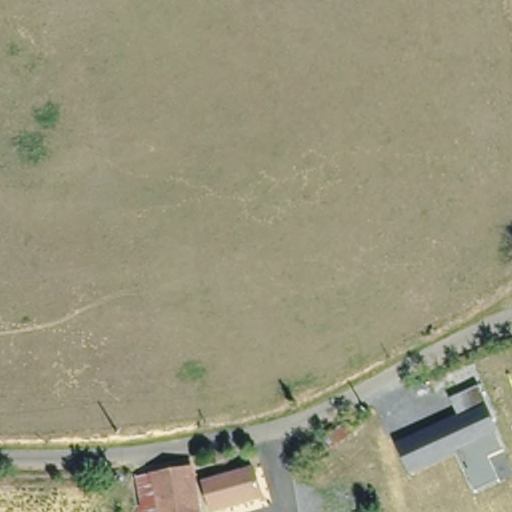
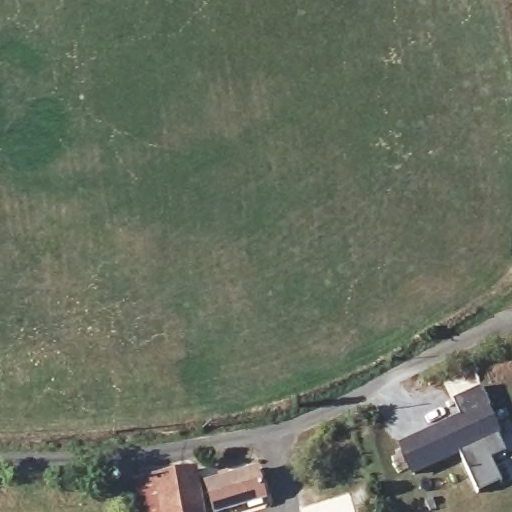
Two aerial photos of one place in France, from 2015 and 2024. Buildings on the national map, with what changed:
unchanged [(451,400),(482,388),(495,419),(493,421),(499,436),(497,437),(505,452),(490,458),(501,483),(478,493),(459,455),(413,478),(398,445),(459,417),(451,400)]
unchanged [(201,512),(159,512),(151,476),(193,466),(201,512)]
unchanged [(263,496),(214,512),(204,483),(255,469),(263,496)]
unchanged [(133,480),(151,476),(159,512),(140,512),(133,480)]

